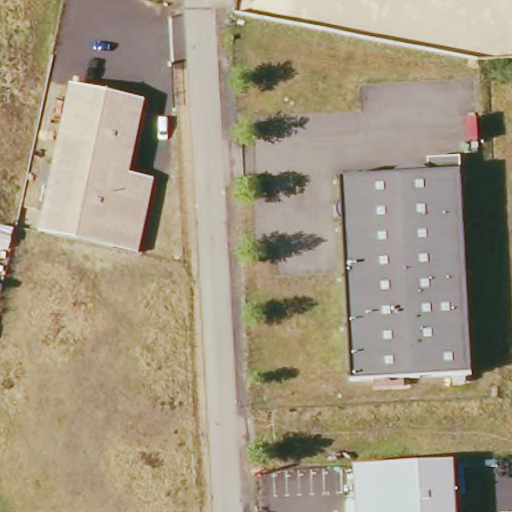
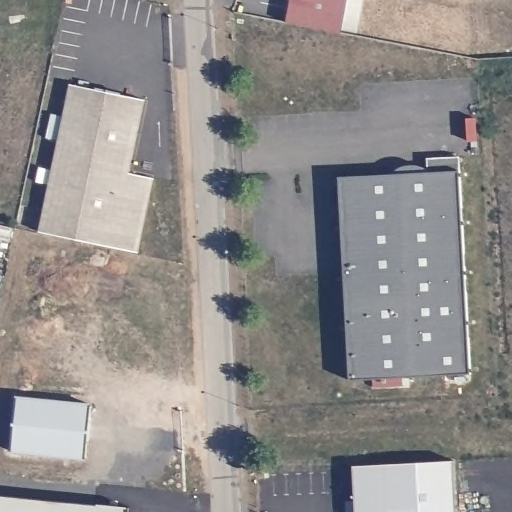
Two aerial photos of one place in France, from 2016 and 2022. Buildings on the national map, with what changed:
new [(288,22),(292,0),(347,0),(341,33),(288,22)]
unchanged [(128,172),(151,177),(137,254),(38,233),(68,86),(143,100),(128,172)]
unchanged [(348,386),(338,181),(428,176),(427,162),(460,160),(461,175),(471,379),(348,386)]
new [(92,404),(86,461),(13,452),(18,396),(92,404)]
unchanged [(457,512),(354,512),(351,468),(454,462),(457,512)]

